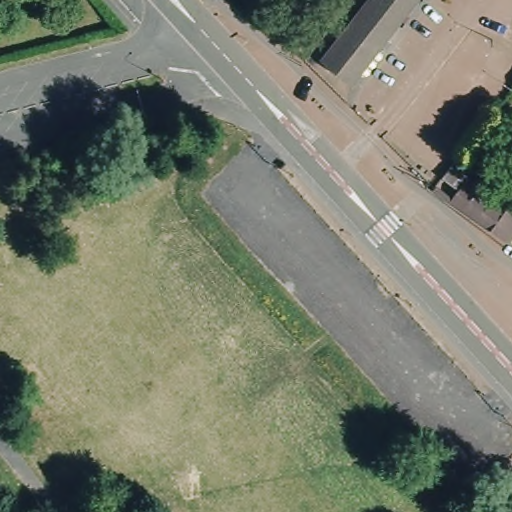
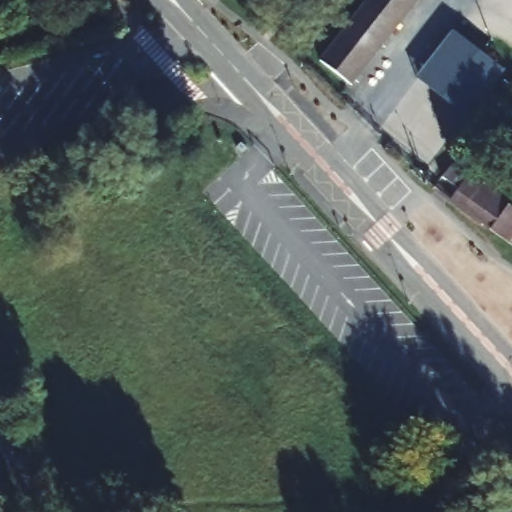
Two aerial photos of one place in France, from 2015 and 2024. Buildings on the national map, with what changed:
unchanged [(352,87),(320,62),(369,0),(420,0),(352,87)]
new [(468,118),(418,78),(454,31),(503,70),(468,118)]
unchanged [(512,206),(512,241),(512,242),(456,200),(464,189),(447,176),(459,160),(485,180),(482,184),(512,206)]

